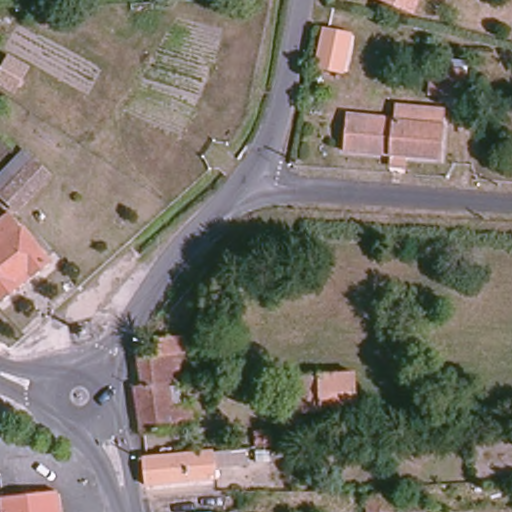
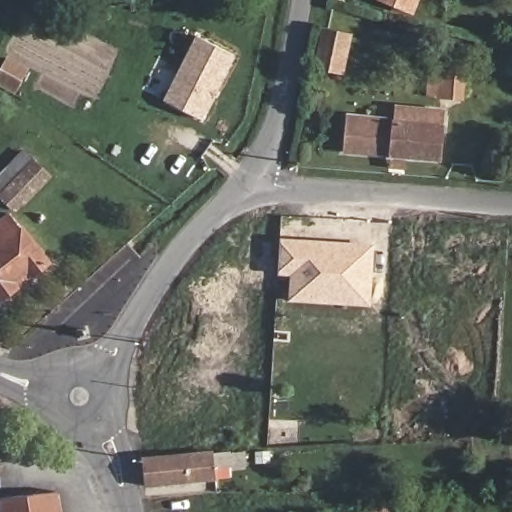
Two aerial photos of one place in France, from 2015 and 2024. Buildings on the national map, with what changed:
unchanged [(381,0),(416,0),(411,12),(381,0)]
unchanged [(349,69),(319,66),(325,28),(354,31),(349,69)]
new [(197,35),(237,55),(204,120),(164,100),(197,35)]
unchanged [(13,92),(0,85),(0,75),(7,60),(25,70),(13,92)]
unchanged [(343,150),(347,115),(349,98),(382,101),(433,107),(445,108),(439,161),(343,150)]
unchanged [(52,176),(13,213),(0,198),(0,173),(27,149),(52,176)]
unchanged [(0,297),(0,223),(13,213),(15,215),(50,262),(35,273),(29,265),(12,278),(19,287),(1,298),(0,297)]
new [(278,275),(279,236),(376,243),(371,306),(288,301),(290,275),(278,275)]
unchanged [(135,390),(143,388),(138,361),(159,357),(158,340),(187,336),(188,353),(183,355),(185,373),(179,376),(184,405),(198,405),(202,424),(141,433),(135,390)]
unchanged [(368,409),(334,411),(334,374),(366,372),(368,409)]
unchanged [(278,377),(294,376),(334,374),(334,411),(295,413),(280,414),(278,377)]
unchanged [(249,447),(250,470),(212,473),(212,482),(140,486),(138,456),(212,450),(249,447)]
unchanged [(4,503),(61,495),(63,512),(5,512),(4,503)]
unchanged [(369,497),(397,495),(398,512),(369,512),(369,497)]

